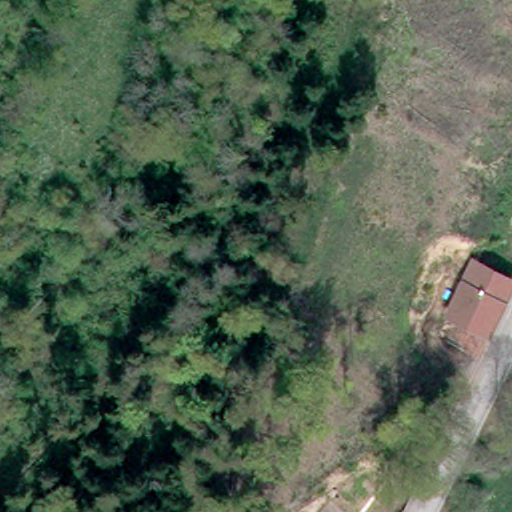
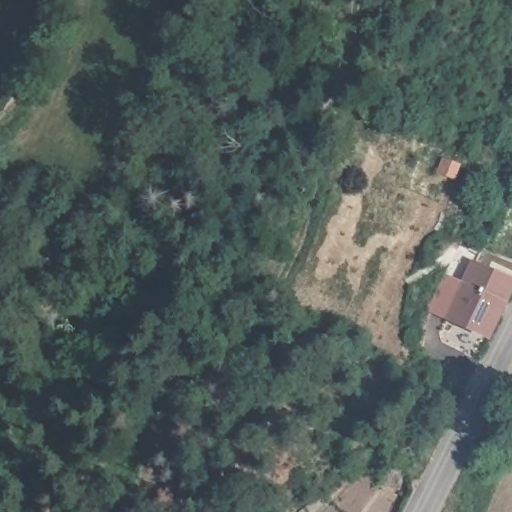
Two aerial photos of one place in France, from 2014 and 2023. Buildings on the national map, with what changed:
unchanged [(512,281),(512,288),(490,335),(450,318),(475,265),(512,281)]

